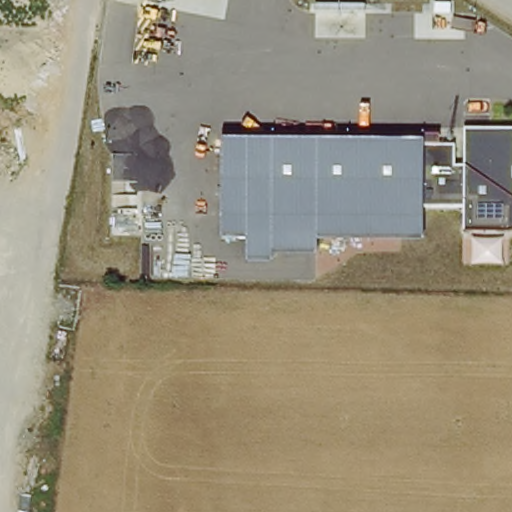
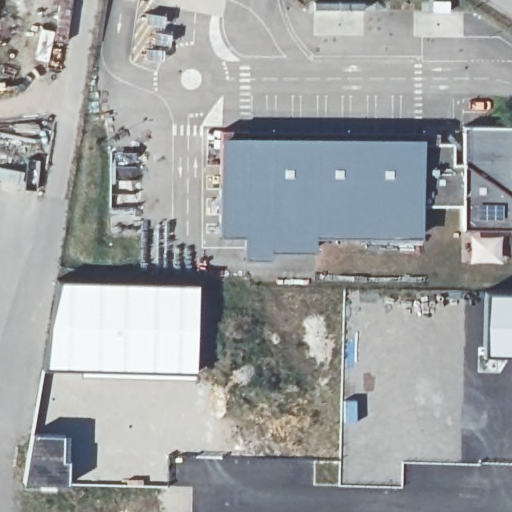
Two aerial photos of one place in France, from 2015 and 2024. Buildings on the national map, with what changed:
unchanged [(424,141),(454,143),(455,166),(464,165),(465,127),(512,128),(512,230),(464,230),(463,206),(424,205),(424,237),(318,236),(316,254),(272,252),(271,262),(246,262),(246,238),(223,237),(224,137),(424,141)]
new [(49,326),(58,280),(198,283),(196,376),(102,373),(44,367),(49,326)]
new [(485,291),(512,292),(512,356),(482,355),(485,291)]
new [(29,432),(66,433),(69,486),(22,486),(29,432)]

